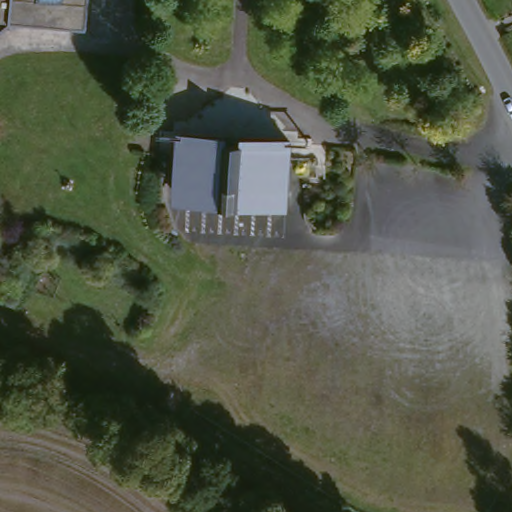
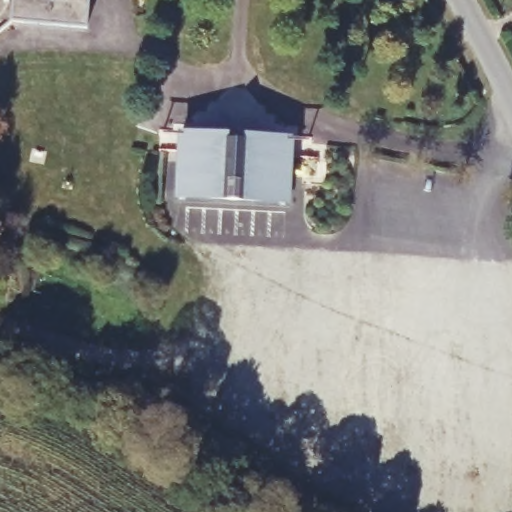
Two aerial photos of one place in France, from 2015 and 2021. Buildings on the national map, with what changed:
unchanged [(92,21),(16,15),(0,29),(0,0),(94,0),(92,21)]
unchanged [(187,133),(297,137),(295,203),(184,196),(187,133)]

